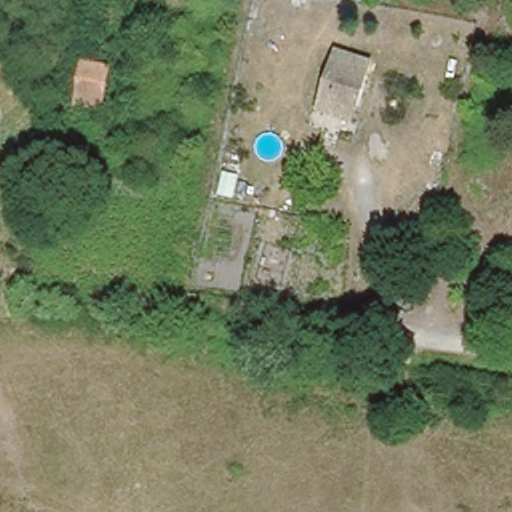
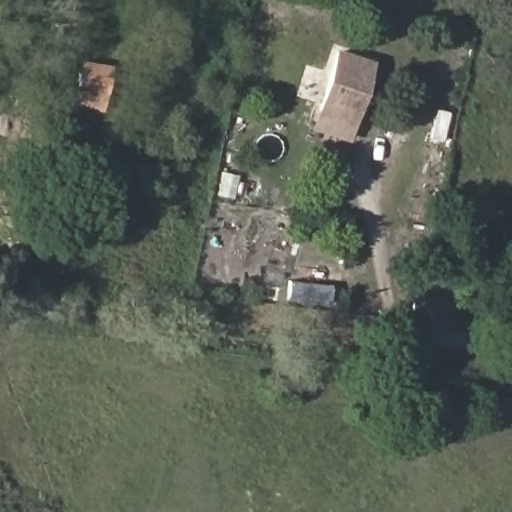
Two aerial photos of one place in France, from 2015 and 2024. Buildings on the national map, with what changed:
unchanged [(364,0),(361,11),(338,7),(340,0),(364,0)]
unchanged [(69,102),(80,54),(114,58),(103,109),(69,102)]
unchanged [(321,110),(339,54),(369,62),(351,118),(321,110)]

